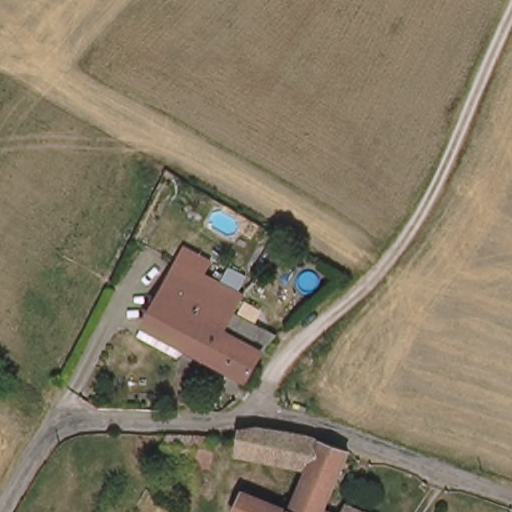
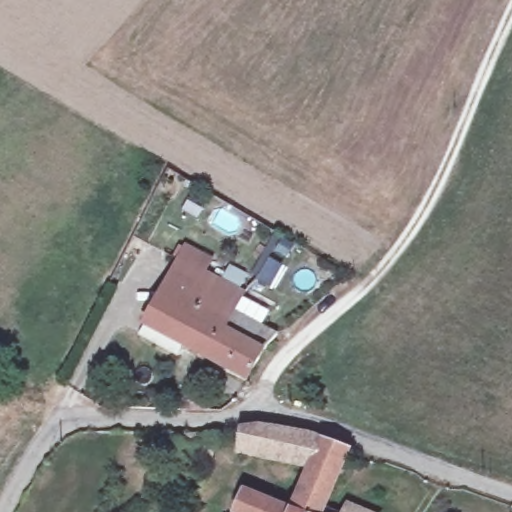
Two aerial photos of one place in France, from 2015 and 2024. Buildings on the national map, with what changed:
unchanged [(138,332),(145,318),(177,255),(243,291),(233,306),(207,351),(187,339),(180,353),(138,332)]
unchanged [(280,330),(266,345),(263,344),(248,371),(207,351),(233,306),(264,321),(280,330)]
unchanged [(183,394),(212,394),(213,409),(184,408),(183,394)]
unchanged [(200,470),(200,460),(164,453),(171,428),(219,436),(217,471),(200,470)]
unchanged [(260,428),(281,428),(307,432),(325,437),(330,439),(352,446),(331,509),(339,512),(241,512),(240,511),(250,492),(297,509),(313,466),(245,450),(247,428),(260,428)]
unchanged [(352,505),(369,512),(349,512),(352,505)]

